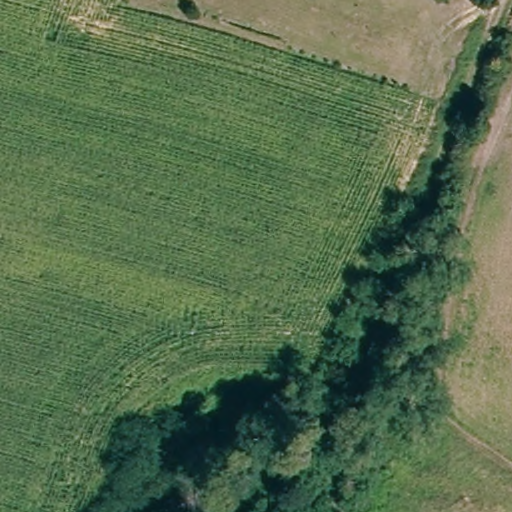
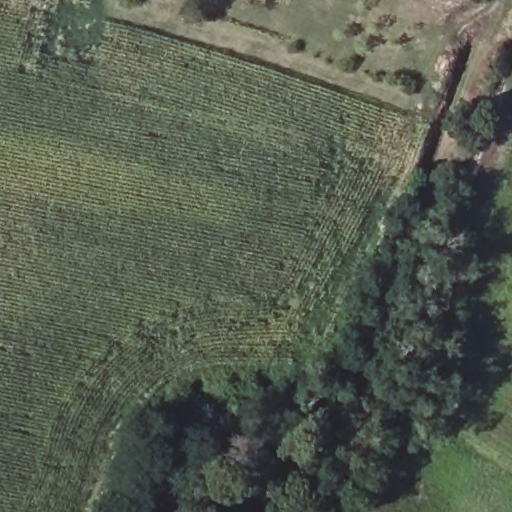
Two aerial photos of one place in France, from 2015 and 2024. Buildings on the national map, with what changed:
unchanged [(359,505),(374,511),(374,512),(356,512),(359,505)]

